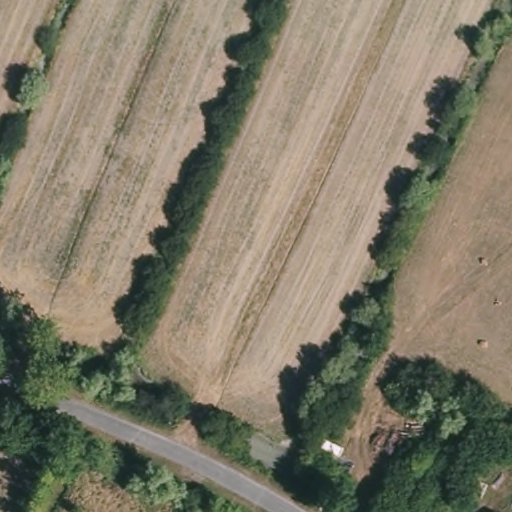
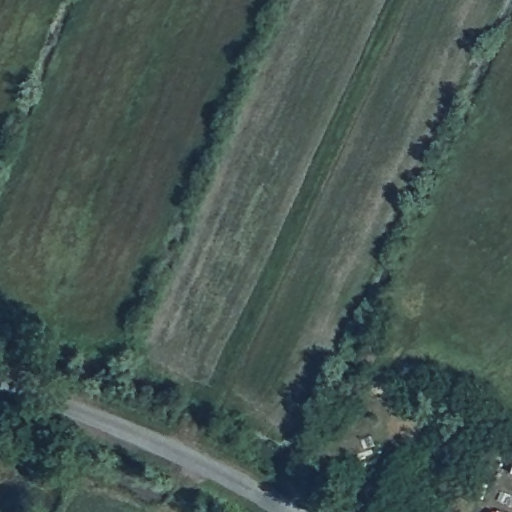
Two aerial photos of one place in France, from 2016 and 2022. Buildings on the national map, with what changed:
unchanged [(478,508),(486,512),(476,512),(478,508)]

